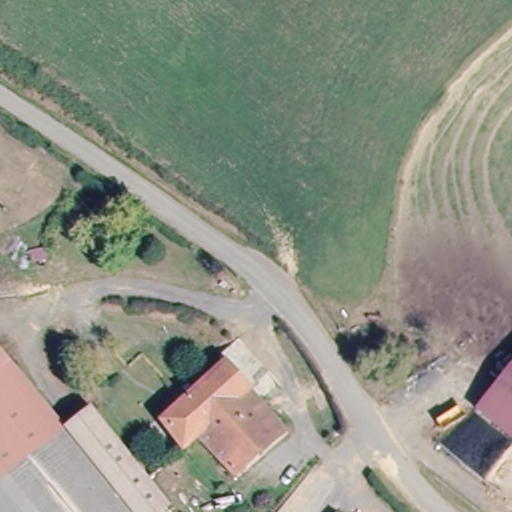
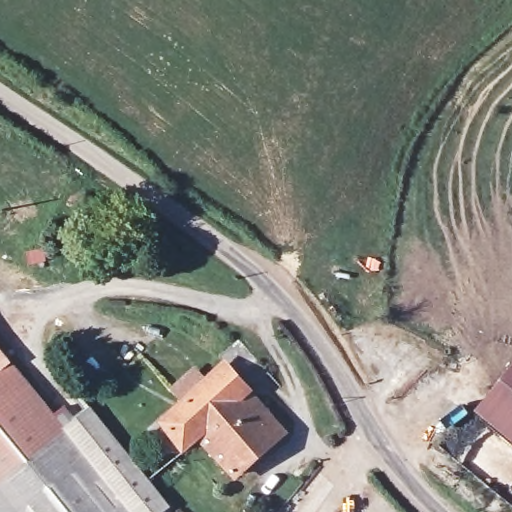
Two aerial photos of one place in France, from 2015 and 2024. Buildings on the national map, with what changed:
unchanged [(227,360),(287,424),(237,470),(202,432),(162,468),(139,443),(227,360)]
unchanged [(162,512),(161,512),(0,512),(0,364),(57,434),(80,413),(162,512)]
unchanged [(495,394),(501,385),(512,372),(512,447),(475,419),(495,394)]

